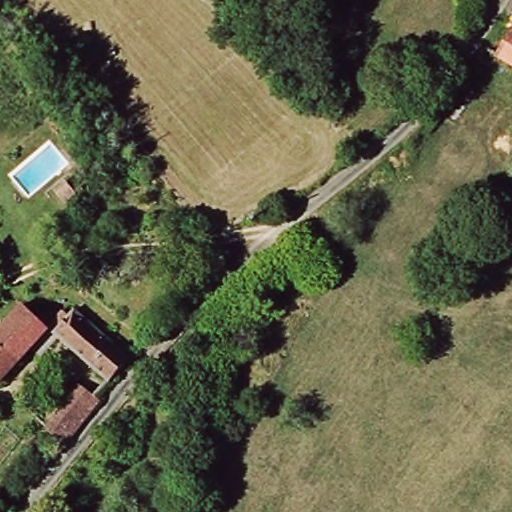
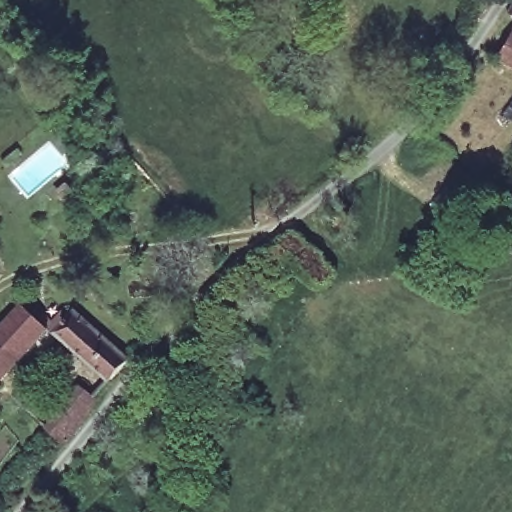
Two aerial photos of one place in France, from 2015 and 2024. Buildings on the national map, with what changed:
unchanged [(512,0),(512,19),(504,13),(512,0)]
unchanged [(489,60),(506,33),(512,37),(512,73),(489,60)]
unchanged [(33,359),(23,349),(0,371),(0,320),(15,305),(48,338),(51,341),(33,359)]
unchanged [(51,341),(48,338),(70,318),(122,367),(100,392),(51,341)]
unchanged [(58,447),(40,428),(60,404),(69,411),(84,394),(95,405),(83,420),(58,447)]

